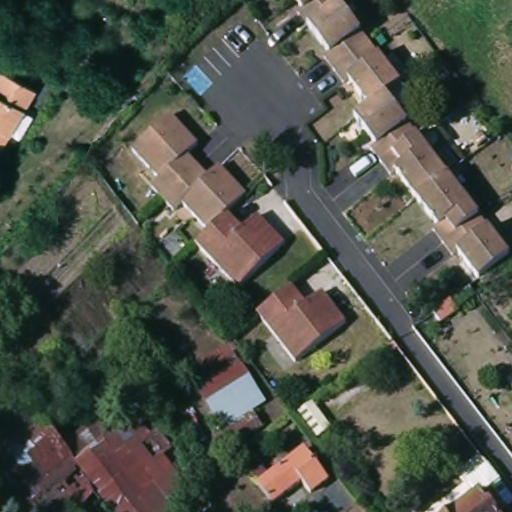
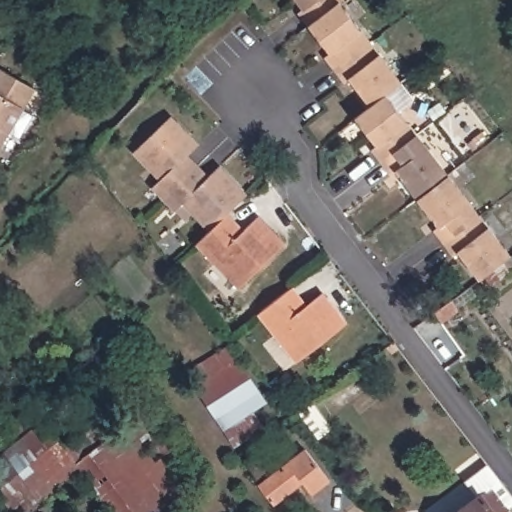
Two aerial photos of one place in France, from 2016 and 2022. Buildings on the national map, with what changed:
unchanged [(352,120),(367,108),(346,80),(341,83),(331,71),(322,59),(327,55),(304,26),(295,14),(299,11),(291,0),(338,0),(335,2),(366,43),(398,84),(383,95),(414,136),(446,177),(477,218),(509,259),(504,262),(477,282),(456,254),(451,258),(442,246),(432,233),(436,229),(415,201),(392,172),(388,176),(378,164),(369,152),(374,148),(352,120)]
unchanged [(12,135),(2,129),(0,133),(0,70),(27,86),(15,107),(25,112),(12,135)]
unchanged [(128,149),(166,112),(191,139),(180,150),(191,161),(202,172),(213,162),(241,191),(236,196),(221,210),(214,217),(203,228),(176,199),(168,206),(156,194),(146,182),(153,175),(128,149)]
unchanged [(214,217),(221,210),(237,227),(253,212),(279,239),(233,284),(191,240),(195,235),(203,228),(214,217)]
unchanged [(304,305),(320,292),(344,324),(293,365),(254,316),(289,288),(304,305)]
unchanged [(456,310),(440,323),(432,314),(450,301),(456,310)]
unchanged [(228,349),(259,399),(248,406),(258,424),(229,442),(181,375),(228,349)]
unchanged [(22,508),(18,512),(0,512),(0,419),(22,401),(53,440),(57,446),(80,430),(93,446),(122,425),(120,422),(133,412),(139,421),(143,419),(167,450),(160,456),(188,494),(166,512),(25,512),(22,508)]
unchanged [(261,486),(291,462),(308,448),(333,480),(314,494),(306,483),(276,506),(261,486)]
unchanged [(489,485),(505,506),(499,512),(453,512),(489,485)]

